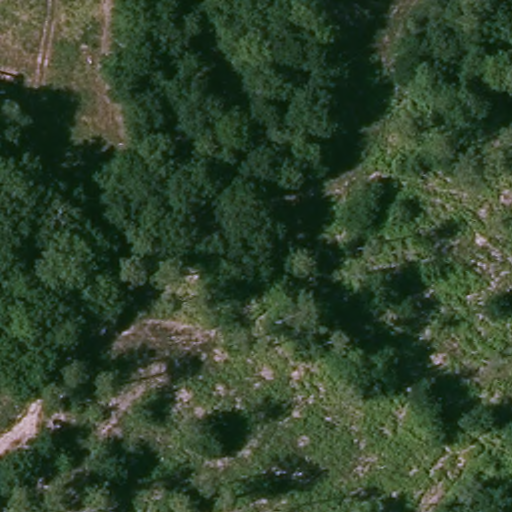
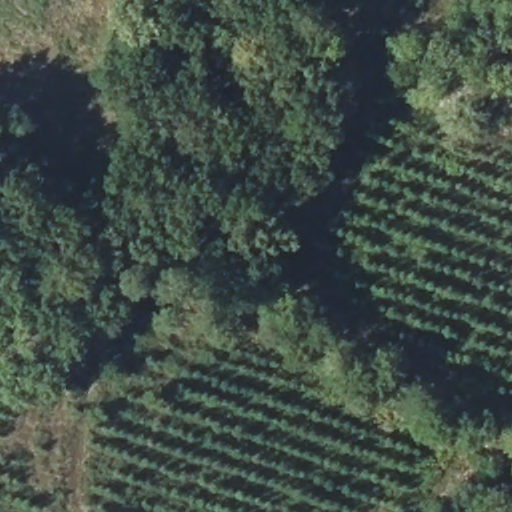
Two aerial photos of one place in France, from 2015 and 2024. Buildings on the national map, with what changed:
[]

